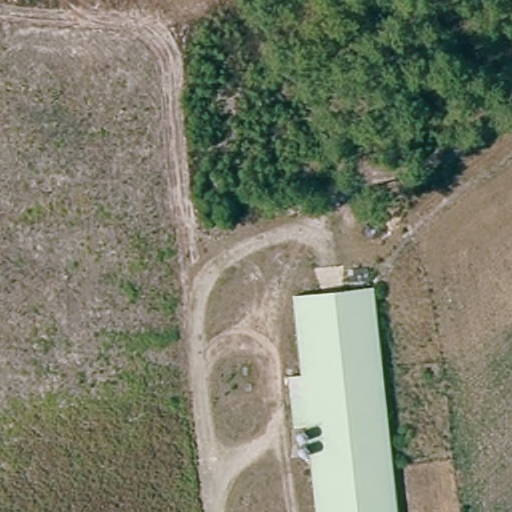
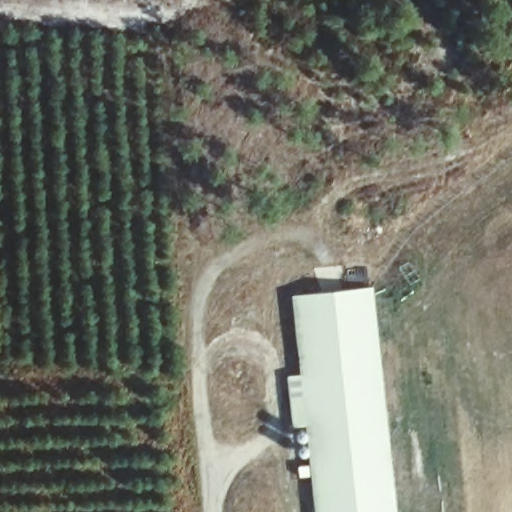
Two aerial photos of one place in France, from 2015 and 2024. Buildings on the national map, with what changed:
unchanged [(315,512),(305,424),(288,426),(284,396),(302,395),(291,299),(365,291),(390,512),(315,512)]

